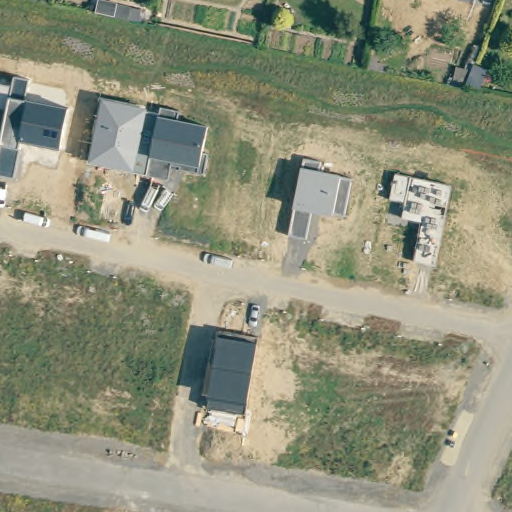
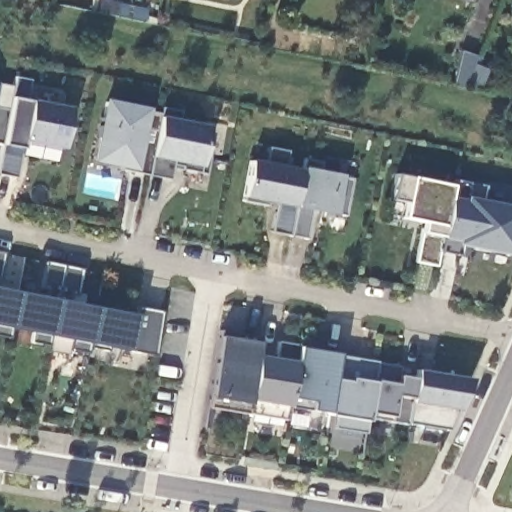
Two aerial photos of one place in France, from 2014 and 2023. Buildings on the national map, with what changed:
new [(146,21),(116,15),(116,16),(98,12),(100,1),(118,4),(148,11),(146,21)]
new [(481,89),(467,84),(465,90),(452,87),(462,52),(478,56),(475,65),(488,71),(481,89)]
unchanged [(0,176),(0,86),(12,88),(14,79),(30,82),(27,102),(69,110),(57,150),(21,142),(14,180),(0,176)]
unchanged [(122,172),(123,164),(95,158),(106,105),(159,117),(160,108),(179,112),(176,121),(206,128),(200,151),(207,153),(204,175),(171,169),(168,180),(122,172)]
unchanged [(292,209),(289,235),(270,232),(274,205),(242,198),(249,159),(266,162),(267,147),(288,152),(286,166),(302,169),(292,209)]
unchanged [(289,235),(292,209),(304,161),(320,164),(320,172),(345,179),(352,181),(341,219),(332,217),(313,214),(306,240),(289,235)]
unchanged [(414,263),(421,222),(402,218),(404,201),(391,199),(396,175),(453,186),(438,268),(414,263)]
new [(484,186),(482,201),(512,206),(512,256),(460,245),(458,255),(441,251),(443,238),(453,186),(453,180),(484,186)]
new [(5,254),(0,276),(0,253),(5,254)]
new [(44,296),(47,263),(82,269),(75,302),(135,314),(137,306),(162,310),(154,355),(129,350),(0,325),(0,287),(44,296)]
new [(257,343),(255,354),(275,358),(280,341),(300,344),(298,347),(337,354),(376,361),(400,365),(398,376),(414,378),(415,369),(471,378),(457,409),(448,429),(406,422),(367,418),(363,434),(331,429),(333,415),(310,411),(287,408),(284,419),(209,406),(210,397),(220,336),(257,343)]

